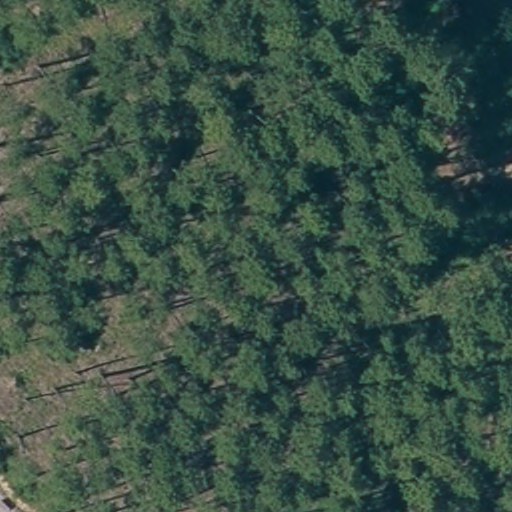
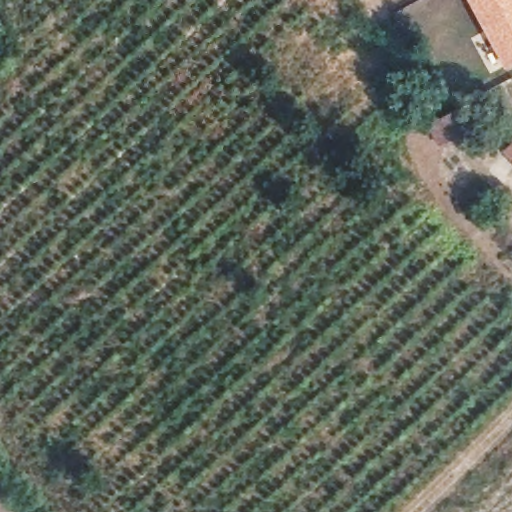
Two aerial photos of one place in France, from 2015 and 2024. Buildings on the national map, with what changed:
new [(505,68),(468,0),(512,0),(512,64),(505,68)]
unchanged [(455,129),(477,118),(483,114),(492,131),(486,134),(463,146),(455,129)]

